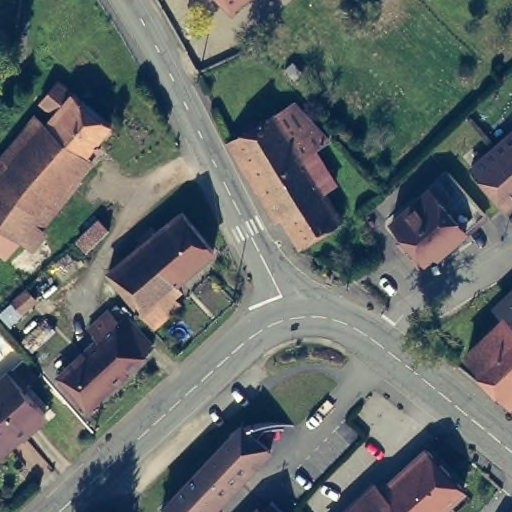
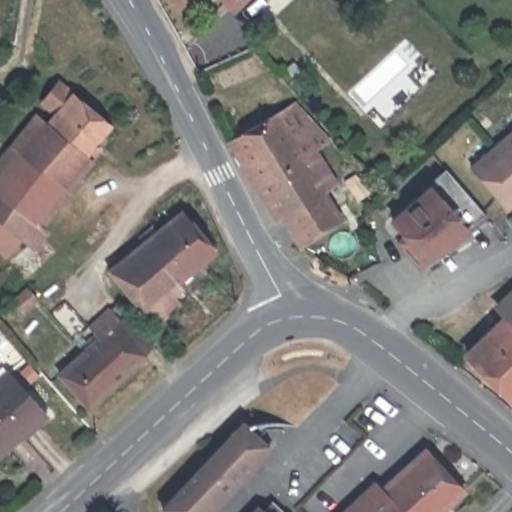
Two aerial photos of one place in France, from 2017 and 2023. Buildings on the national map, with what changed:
unchanged [(216,0),(248,0),(232,17),(216,0)]
unchanged [(0,185),(40,126),(46,130),(49,126),(55,116),(49,113),(55,105),(61,109),(70,97),(106,122),(82,154),(86,159),(37,226),(0,199),(0,185)]
unchanged [(49,126),(46,130),(40,126),(0,185),(0,139),(23,107),(49,126)]
unchanged [(282,111),(319,150),(305,157),(326,194),(313,201),(330,230),(290,253),(226,144),(282,111)]
unchanged [(512,137),(512,208),(511,209),(476,168),(512,137)]
unchanged [(455,181),(475,218),(418,253),(392,216),(455,181)]
unchanged [(23,245),(14,239),(0,229),(0,199),(37,226),(23,245)]
unchanged [(156,321),(144,307),(142,308),(112,270),(145,243),(140,236),(153,225),(160,231),(182,213),(214,250),(176,280),(187,295),(156,321)]
unchanged [(5,252),(0,249),(0,229),(14,239),(5,252)]
unchanged [(350,287),(345,295),(329,284),(333,277),(350,287)]
unchanged [(512,308),(512,396),(508,399),(464,353),(512,308)]
unchanged [(93,403),(65,374),(127,313),(156,343),(93,403)]
unchanged [(8,419),(13,416),(0,400),(0,389),(12,378),(50,419),(29,437),(26,439),(8,419)]
unchanged [(8,419),(26,439),(2,460),(0,457),(0,400),(13,416),(8,419)]
unchanged [(270,451),(223,500),(217,495),(202,512),(165,512),(161,509),(242,424),(270,451)]
unchanged [(436,448),(475,484),(444,512),(370,512),(436,448)]
unchanged [(261,507),(267,511),(275,504),(284,512),(257,512),(261,507)]

